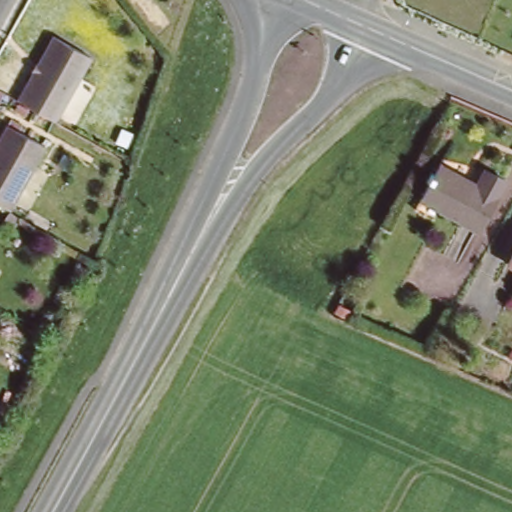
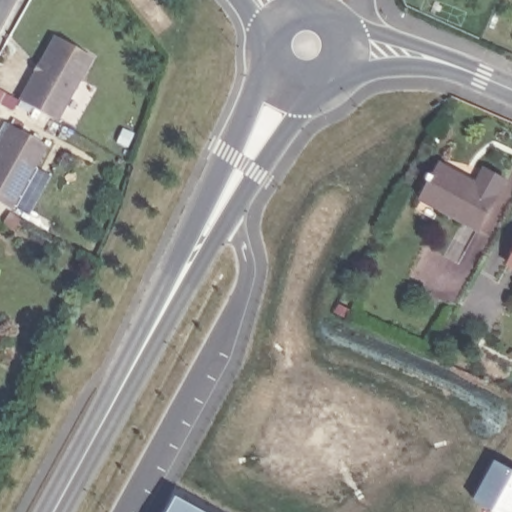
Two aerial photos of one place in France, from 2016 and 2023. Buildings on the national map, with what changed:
unchanged [(49,37),(86,57),(52,121),(15,101),(49,37)]
unchanged [(45,147),(9,211),(0,206),(0,141),(8,126),(45,147)]
unchanged [(439,162),(477,182),(486,165),(507,175),(479,227),(421,195),(439,162)]
unchanged [(503,262),(512,246),(512,268),(503,262)]
new [(512,469),(512,512),(496,512),(474,500),(496,460),(512,469)]
new [(198,512),(169,512),(176,500),(198,512)]

